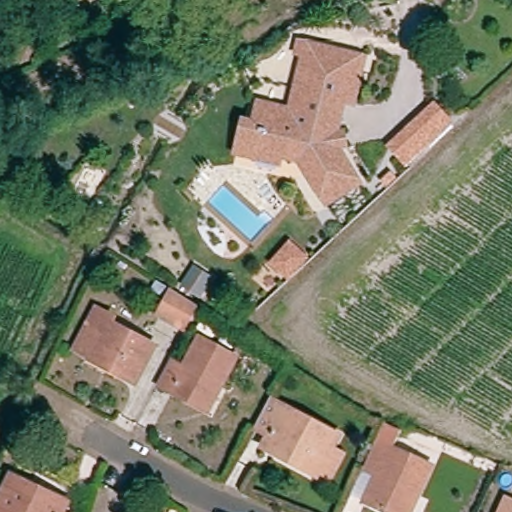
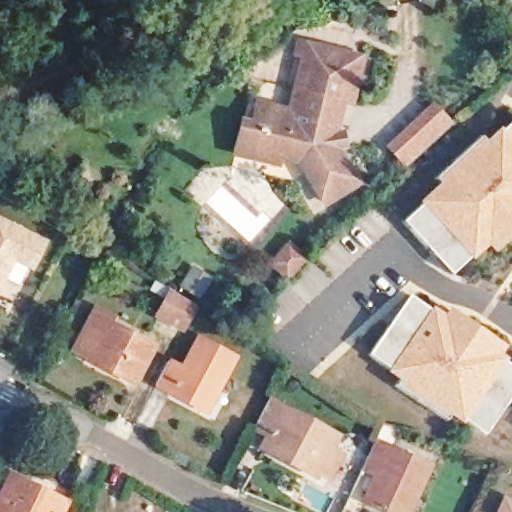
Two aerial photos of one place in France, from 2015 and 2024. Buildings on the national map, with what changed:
unchanged [(230,135),(239,137),(246,111),(276,119),(282,100),(288,80),(293,62),(285,59),(290,42),(355,60),(343,108),(335,106),(329,135),(335,139),(336,157),(331,161),(350,194),(315,214),(295,181),(296,174),(269,167),(266,175),(243,169),(222,164),(230,135)]
unchanged [(452,122),(409,163),(396,150),(390,143),(433,101),(440,108),(452,122)]
new [(510,221),(451,276),(408,231),(402,224),(425,201),(491,140),(512,120),(512,232),(494,249),(487,242),(510,221)]
new [(433,180),(456,159),(479,138),(485,145),(463,166),(440,187),(433,180)]
unchanged [(396,176),(386,185),(381,181),(392,171),(396,176)]
new [(35,272),(16,263),(0,297),(0,216),(50,241),(35,272)]
unchanged [(290,281),(275,269),(292,250),(306,262),(290,281)]
unchanged [(202,302),(185,291),(196,274),(214,285),(202,302)]
new [(460,418),(428,397),(453,415),(448,423),(422,406),(396,388),(402,380),(396,376),(369,358),(375,350),(409,298),(445,323),(450,314),(476,331),(501,349),(496,357),(512,368),(512,399),(492,428),(486,437),(460,418)]
unchanged [(190,318),(178,339),(155,326),(168,303),(190,318)]
unchanged [(105,327),(102,332),(143,354),(124,388),(82,365),(66,357),(78,336),(88,318),(105,327)]
unchanged [(200,407),(159,386),(171,362),(186,370),(200,344),(236,363),(222,390),(211,412),(200,407)]
unchanged [(330,473),(318,467),(313,478),(293,468),(263,451),(266,445),(270,440),(255,432),(270,404),(334,438),(330,447),(341,453),(330,473)]
unchanged [(403,509),(372,493),(381,471),(367,464),(378,440),(430,466),(422,485),(410,512),(403,509)]
unchanged [(27,489),(60,505),(57,512),(0,512),(0,491),(5,479),(27,489)]
unchanged [(512,506),(512,512),(492,512),(497,500),(512,506)]

